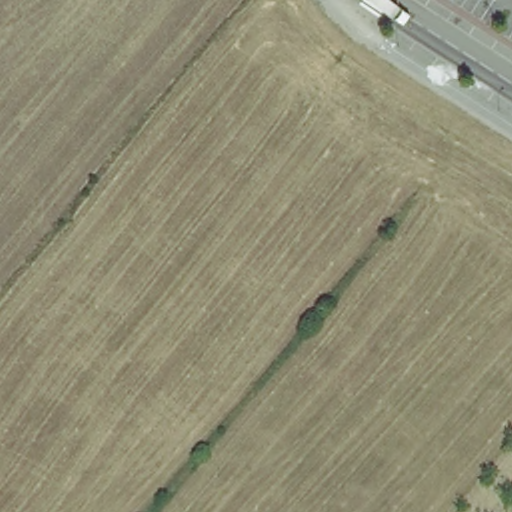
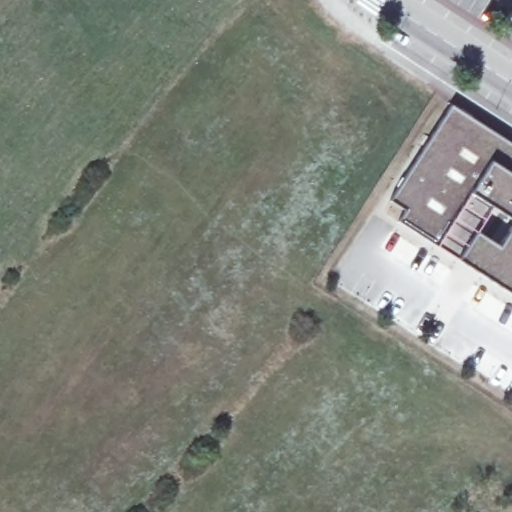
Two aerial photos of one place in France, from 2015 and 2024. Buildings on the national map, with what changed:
new [(391,186),(447,102),(512,145),(512,147),(500,165),(512,172),(512,272),(508,277),(399,205),(405,195),(391,186)]

